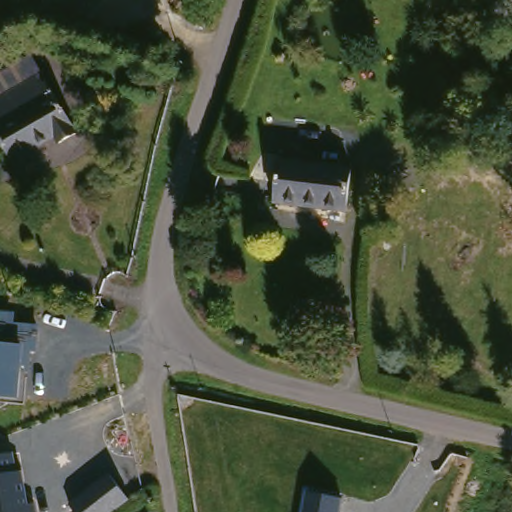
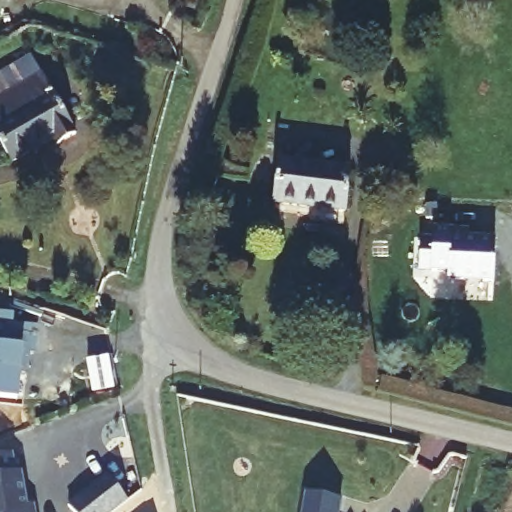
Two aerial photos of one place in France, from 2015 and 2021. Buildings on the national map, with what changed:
unchanged [(42,133),(4,156),(0,150),(0,89),(33,69),(64,128),(47,140),(42,133)]
unchanged [(277,163),(347,172),(343,213),(270,204),(277,163)]
new [(433,237),(433,227),(452,228),(469,229),(469,237),(494,238),(493,282),(448,279),(449,272),(432,272),(432,270),(420,270),(421,237),(433,237)]
unchanged [(0,396),(0,310),(14,311),(14,324),(36,324),(36,348),(26,349),(28,369),(20,365),(18,397),(0,396)]
unchanged [(18,470),(22,470),(28,504),(34,503),(35,512),(0,512),(0,453),(14,450),(18,470)]
unchanged [(73,512),(68,505),(107,473),(129,500),(113,512),(73,512)]
unchanged [(301,512),(304,491),(343,499),(340,512),(301,512)]

